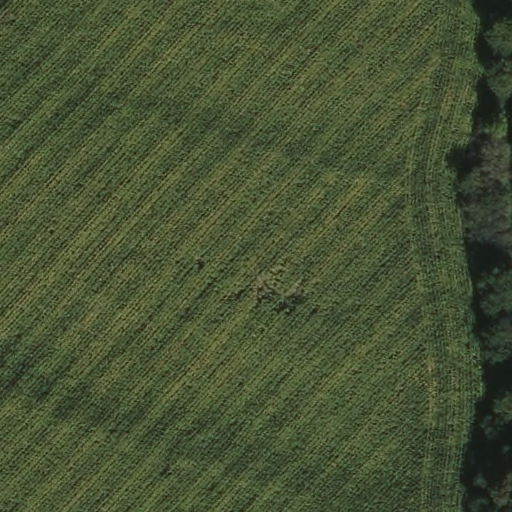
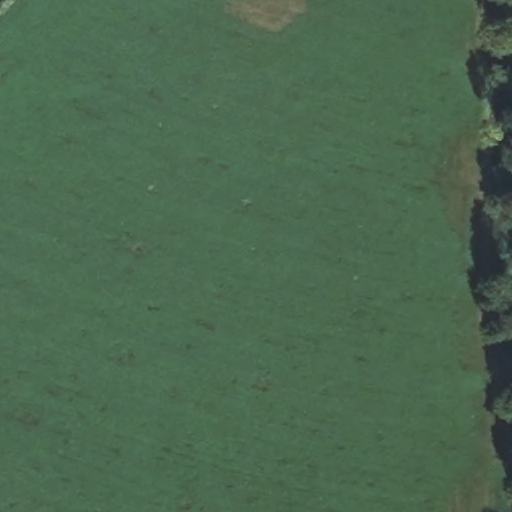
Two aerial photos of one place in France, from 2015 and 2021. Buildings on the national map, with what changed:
[]

